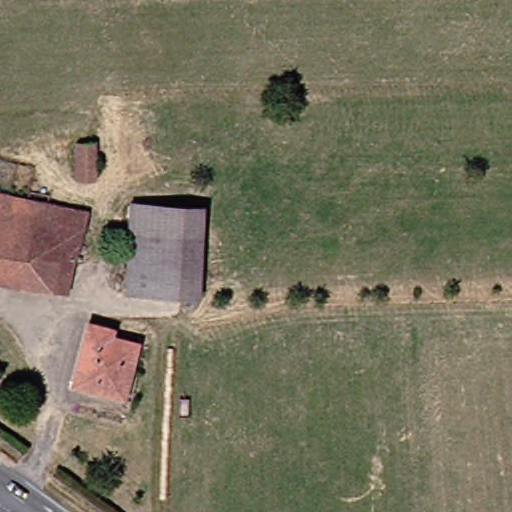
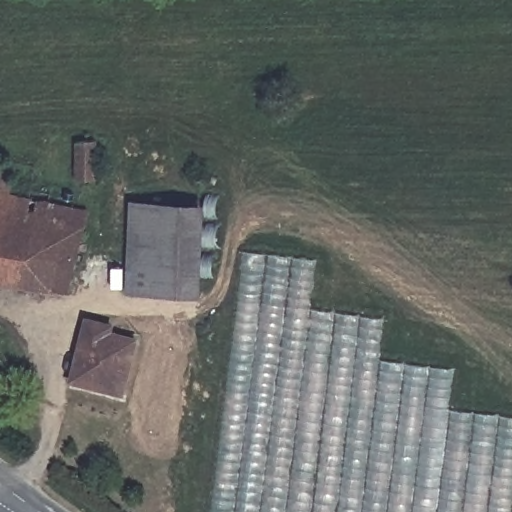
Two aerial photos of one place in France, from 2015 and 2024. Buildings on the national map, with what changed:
unchanged [(79,179),(77,145),(96,145),(96,179),(79,179)]
unchanged [(15,282),(0,280),(0,195),(19,199),(46,204),(88,212),(84,227),(76,260),(68,290),(54,287),(15,282)]
unchanged [(130,292),(133,205),(179,207),(206,208),(202,295),(177,295),(130,292)]
new [(319,259),(312,307),(385,320),(381,359),(456,368),(451,410),(512,417),(512,512),(211,512),(243,251),(319,259)]
unchanged [(110,340),(136,346),(124,394),(76,381),(91,326),(112,331),(110,340)]

